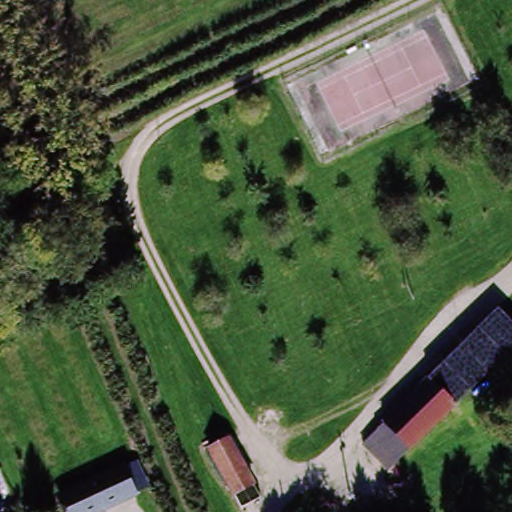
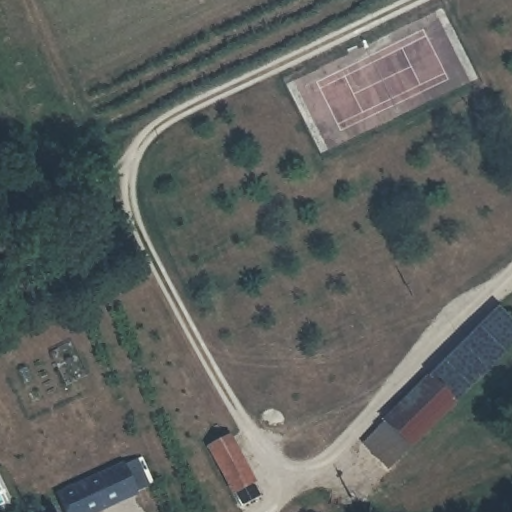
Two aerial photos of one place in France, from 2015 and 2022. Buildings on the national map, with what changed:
unchanged [(500,305),(512,317),(512,348),(390,469),(364,443),(481,325),(500,305)]
unchanged [(232,438),(240,453),(260,503),(241,512),(237,512),(217,463),(211,447),(232,438)]
unchanged [(65,512),(57,494),(125,462),(139,494),(96,512),(65,512)]

